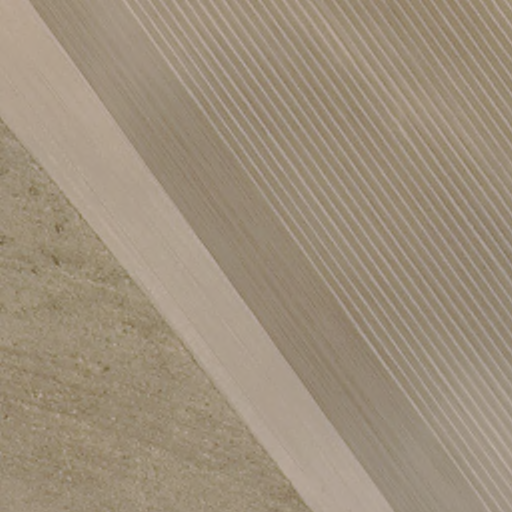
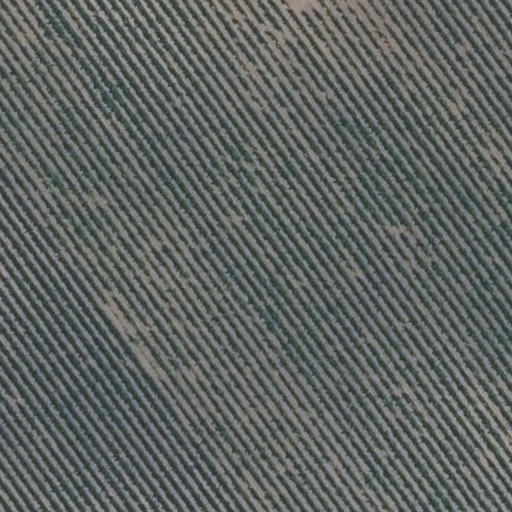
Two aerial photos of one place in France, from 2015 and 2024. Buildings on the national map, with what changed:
[]

